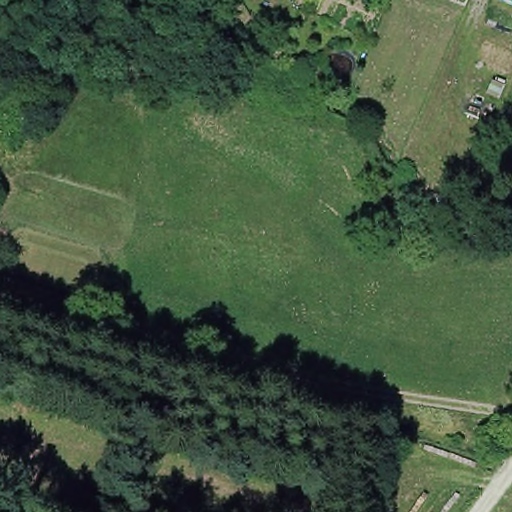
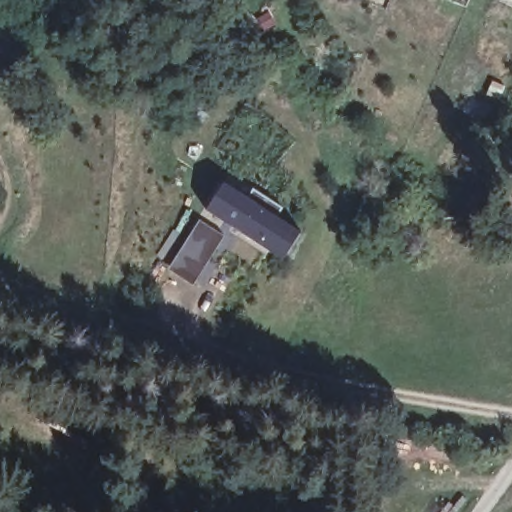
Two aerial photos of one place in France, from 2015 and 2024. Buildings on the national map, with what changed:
new [(207,212),(226,184),(249,198),(254,190),(282,209),(277,216),(304,233),(285,261),(207,212)]
new [(194,286),(168,270),(200,219),(225,236),(194,286)]

